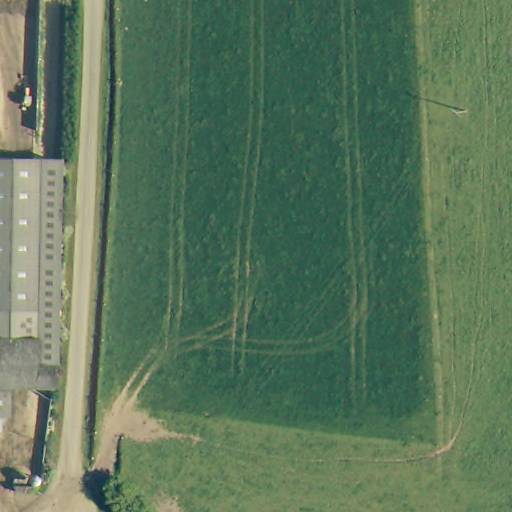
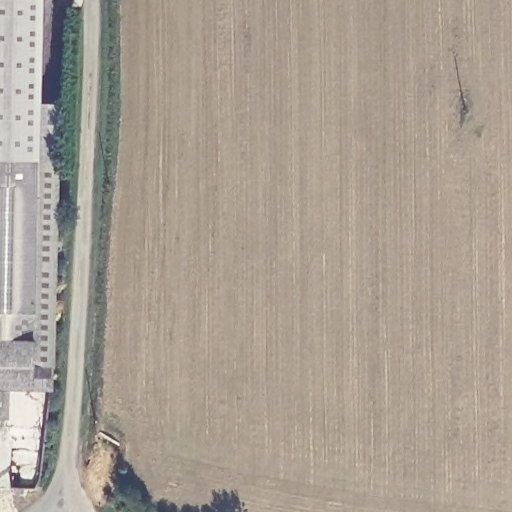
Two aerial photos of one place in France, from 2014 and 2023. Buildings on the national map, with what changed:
new [(40,156),(0,156),(0,0),(40,0),(37,101),(59,102),(55,157),(40,157),(40,156)]
unchanged [(12,381),(0,381),(0,156),(40,156),(40,157),(34,364),(34,385),(12,385),(12,381)]
unchanged [(61,157),(54,385),(34,385),(34,364),(40,157),(61,157)]
unchanged [(12,385),(10,412),(0,413),(0,381),(12,381),(12,385)]

